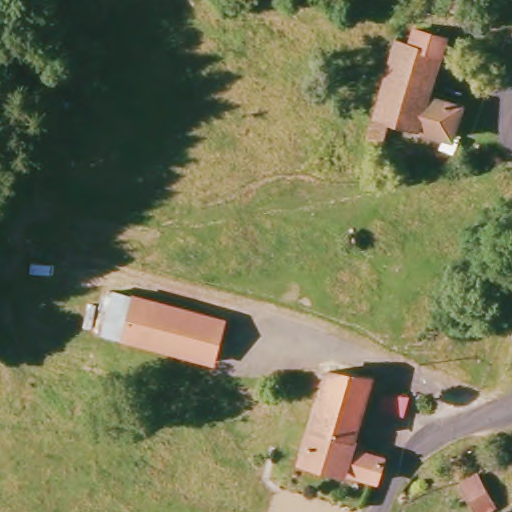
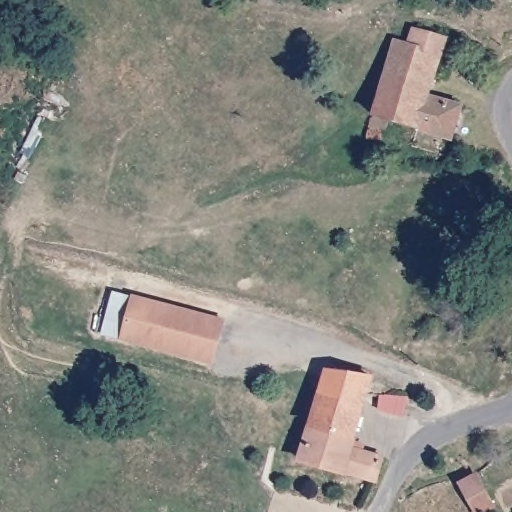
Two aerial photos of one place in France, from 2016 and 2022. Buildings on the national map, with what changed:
unchanged [(408,47),(412,32),(441,42),(426,95),(459,106),(449,140),(390,121),(382,145),(365,140),(390,43),(408,47)]
unchanged [(118,342),(129,295),(222,322),(212,365),(118,342)]
unchanged [(297,459),(323,364),(367,377),(349,444),(380,454),(373,480),(297,459)]
unchanged [(402,416),(379,415),(381,397),(404,400),(402,416)]
unchanged [(461,488),(478,477),(493,505),(484,512),(475,512),(461,488)]

